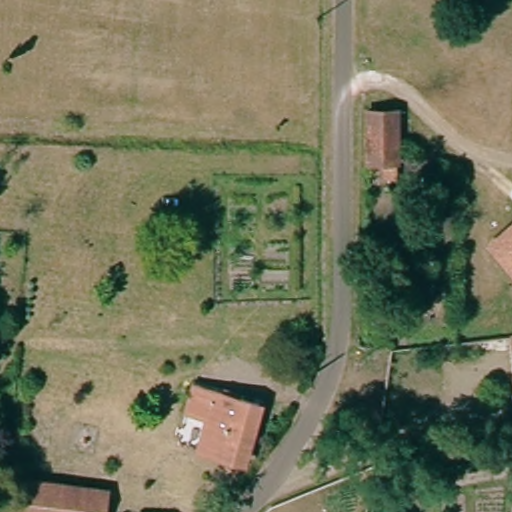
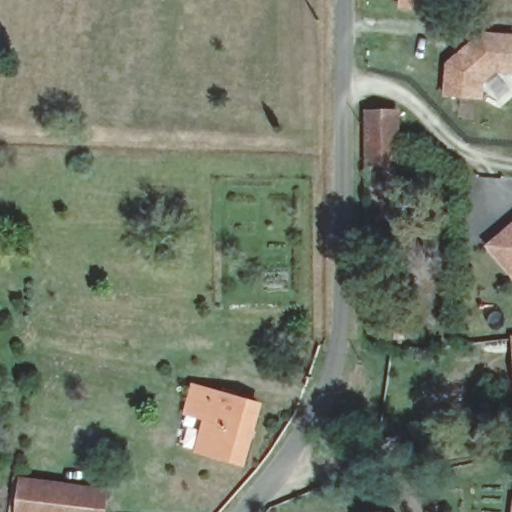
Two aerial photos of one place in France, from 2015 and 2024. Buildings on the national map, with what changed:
new [(430,10),(399,9),(400,0),(431,0),(430,10)]
new [(484,81),(483,99),(443,96),(446,63),(481,32),(512,34),(512,72),(498,72),(484,81)]
unchanged [(399,164),(367,164),(368,113),(398,114),(399,164)]
unchanged [(512,275),(484,243),(512,220),(512,275)]
unchanged [(419,262),(420,280),(392,282),(389,265),(419,262)]
unchanged [(255,407),(248,431),(239,464),(192,450),(203,420),(183,414),(189,388),(255,407)]
unchanged [(54,481),(53,492),(49,512),(13,512),(17,476),(54,481)]
unchanged [(99,512),(49,512),(53,492),(54,481),(103,487),(99,512)]

